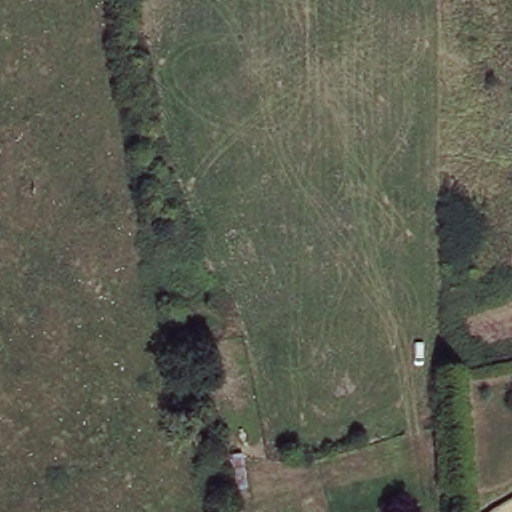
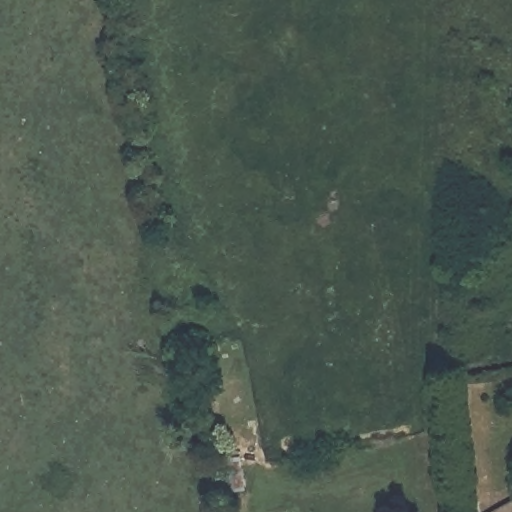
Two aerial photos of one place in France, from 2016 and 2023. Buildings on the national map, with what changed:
unchanged [(251,487),(219,492),(215,456),(246,453),(251,487)]
unchanged [(512,512),(490,512),(512,499),(512,512)]

